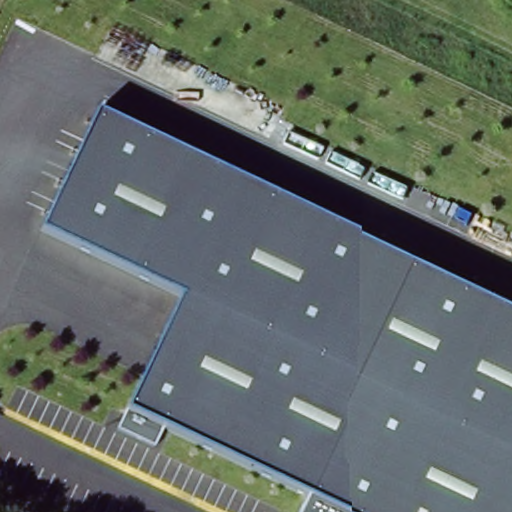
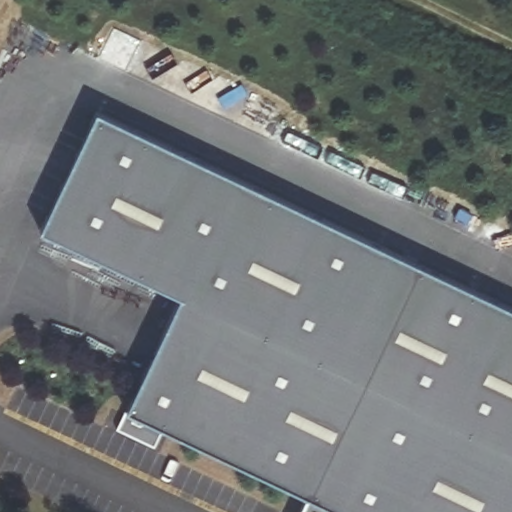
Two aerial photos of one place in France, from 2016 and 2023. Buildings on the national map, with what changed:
unchanged [(512,512),(300,512),(309,493),(165,425),(155,444),(119,428),(128,407),(182,294),(39,228),(97,108),(512,305),(512,512)]

